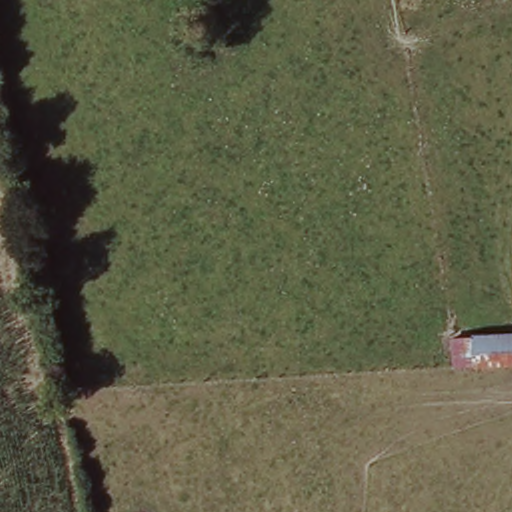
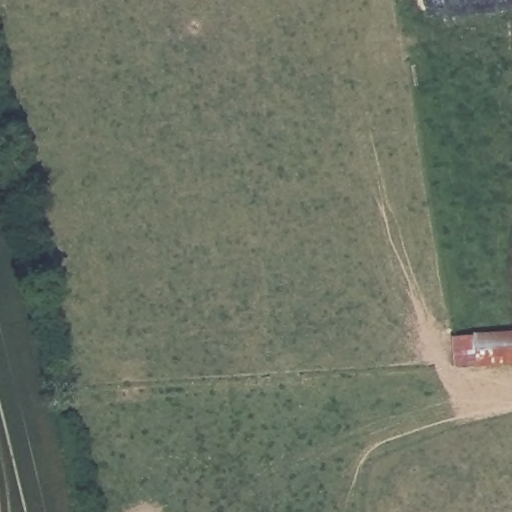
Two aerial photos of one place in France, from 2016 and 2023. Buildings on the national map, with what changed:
unchanged [(456,372),(452,343),(497,336),(502,365),(456,372)]

